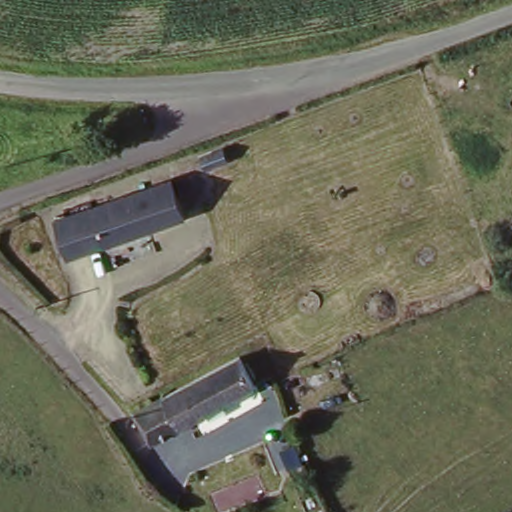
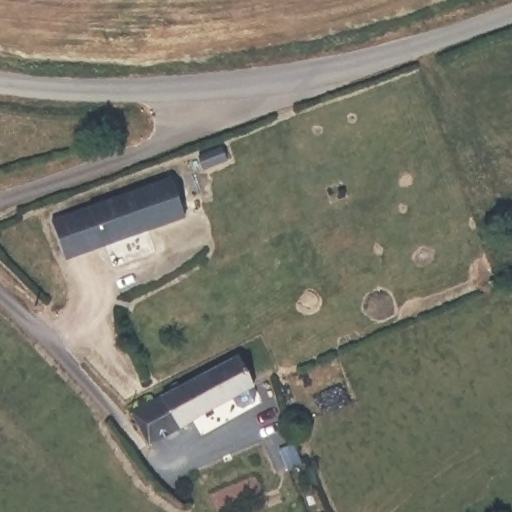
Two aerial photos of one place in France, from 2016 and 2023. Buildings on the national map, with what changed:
unchanged [(173,183),(187,221),(71,264),(57,226),(173,183)]
unchanged [(239,356),(253,383),(145,439),(129,412),(239,356)]

